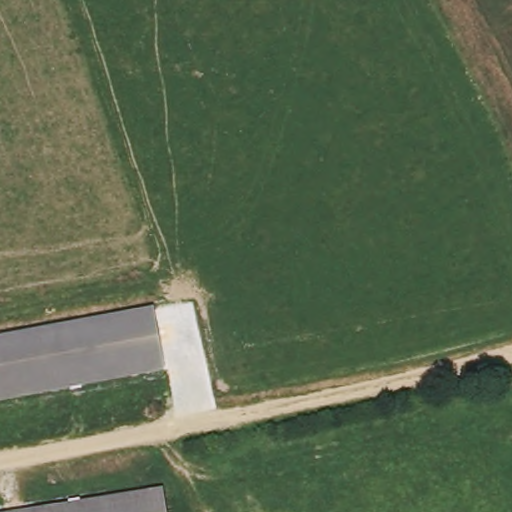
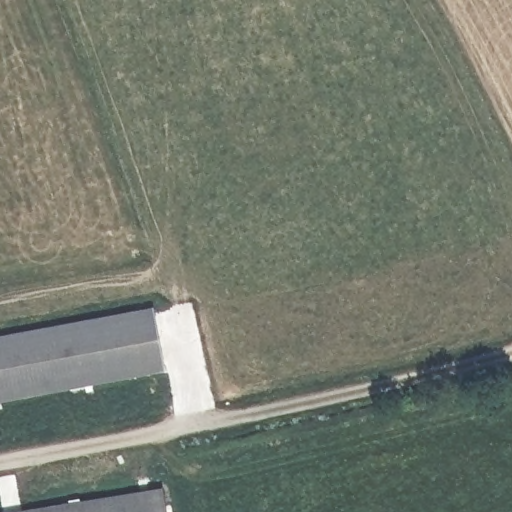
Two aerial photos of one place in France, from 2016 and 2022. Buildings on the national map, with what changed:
unchanged [(0,336),(157,307),(168,369),(0,399),(0,336)]
unchanged [(162,487),(168,512),(7,512),(162,487)]

